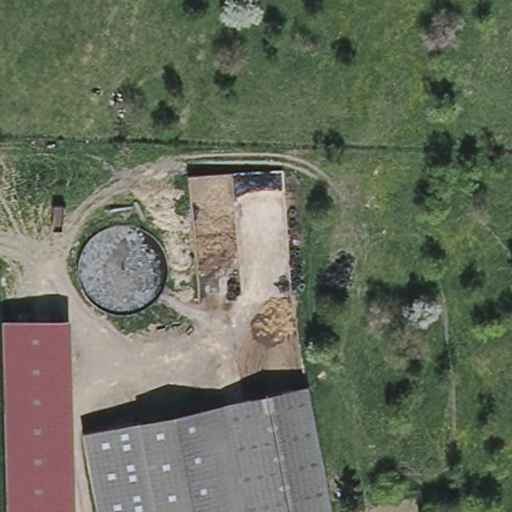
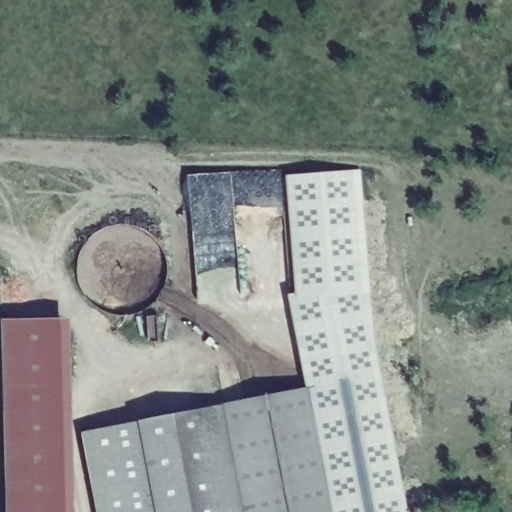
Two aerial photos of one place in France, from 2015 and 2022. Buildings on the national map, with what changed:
new [(295,296),(285,179),(361,172),(370,311),(408,512),(331,512),(306,387),(287,297),(295,296)]
unchanged [(27,315),(63,313),(68,512),(11,512),(6,315),(27,315)]
unchanged [(306,387),(331,512),(98,512),(82,432),(306,387)]

